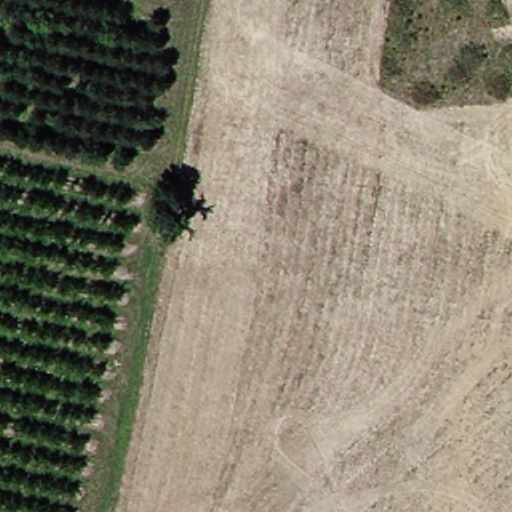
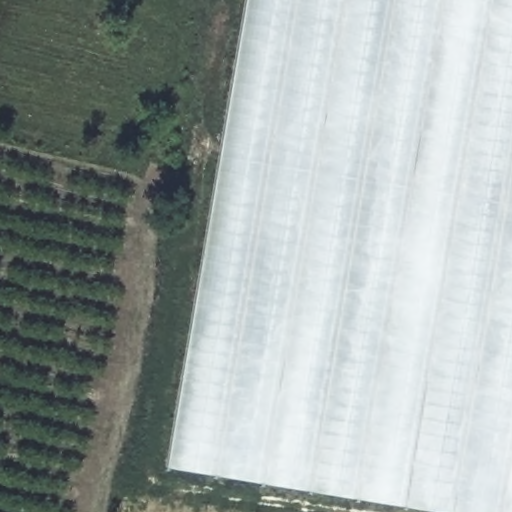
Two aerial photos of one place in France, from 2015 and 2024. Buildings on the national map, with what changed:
new [(242,0),(512,0),(512,512),(420,512),(163,467),(242,0)]

